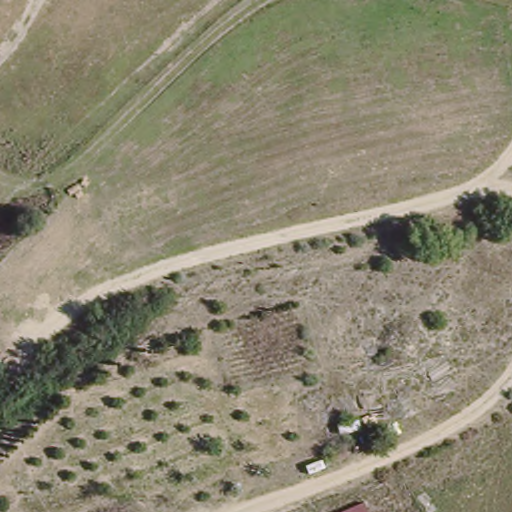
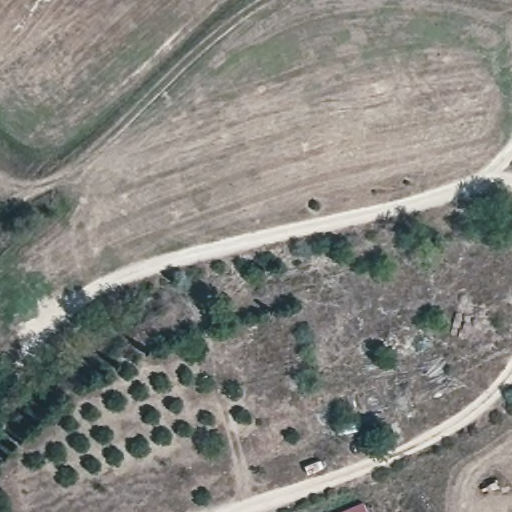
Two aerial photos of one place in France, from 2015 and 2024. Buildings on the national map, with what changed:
unchanged [(366,512),(340,512),(362,503),(366,512)]

